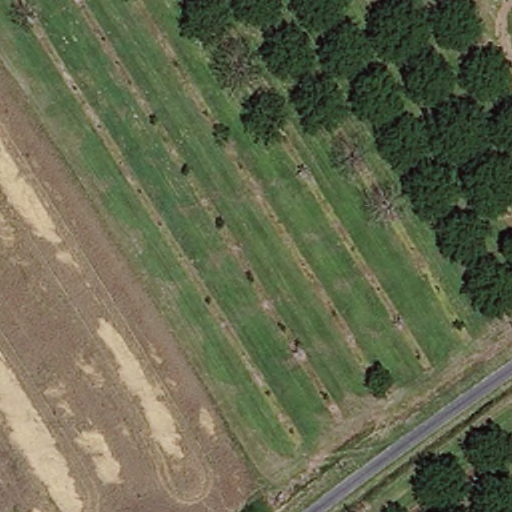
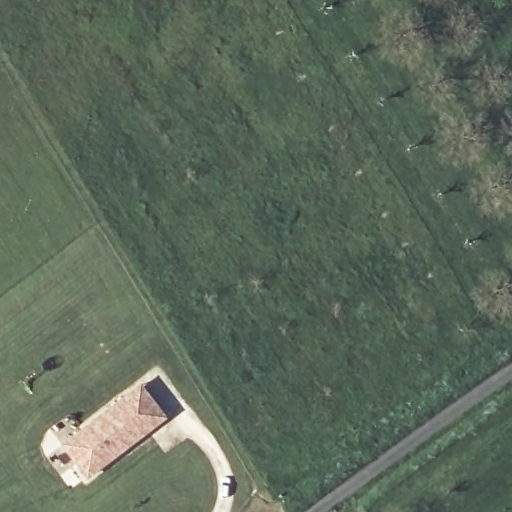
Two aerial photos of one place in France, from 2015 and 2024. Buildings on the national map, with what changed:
new [(61,444),(140,383),(166,417),(86,478),(61,444)]

